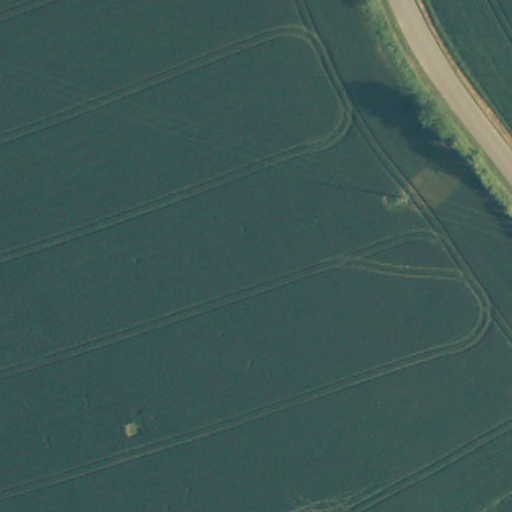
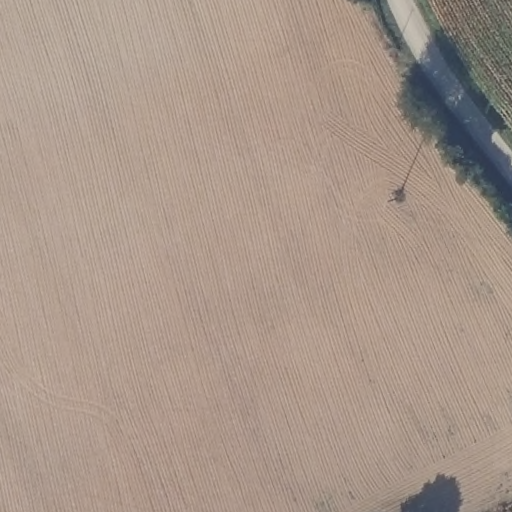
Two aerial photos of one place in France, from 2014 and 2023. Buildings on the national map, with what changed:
[]

